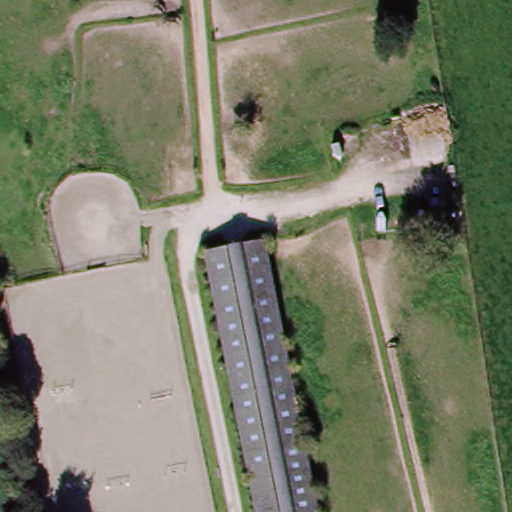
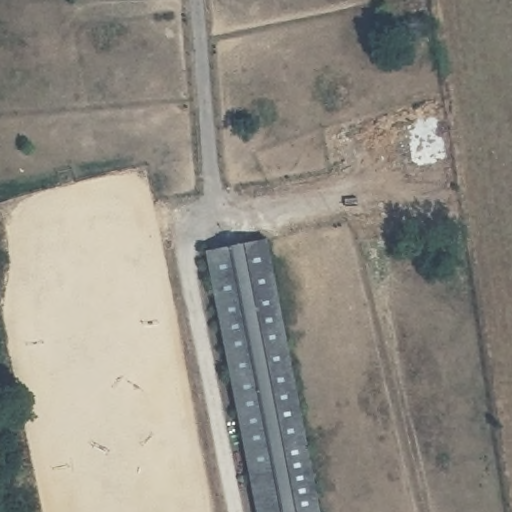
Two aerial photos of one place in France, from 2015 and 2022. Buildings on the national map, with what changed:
unchanged [(255,234),(291,400),(315,512),(256,512),(197,246),(255,234)]

